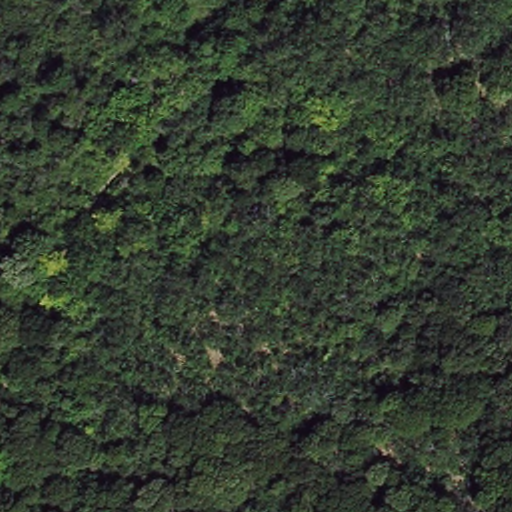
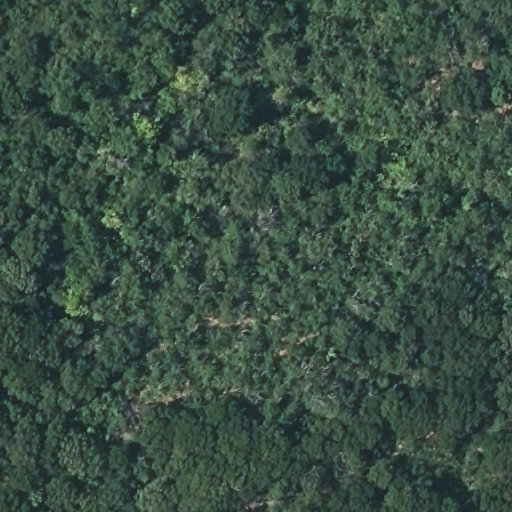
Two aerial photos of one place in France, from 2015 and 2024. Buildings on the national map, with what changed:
[]

